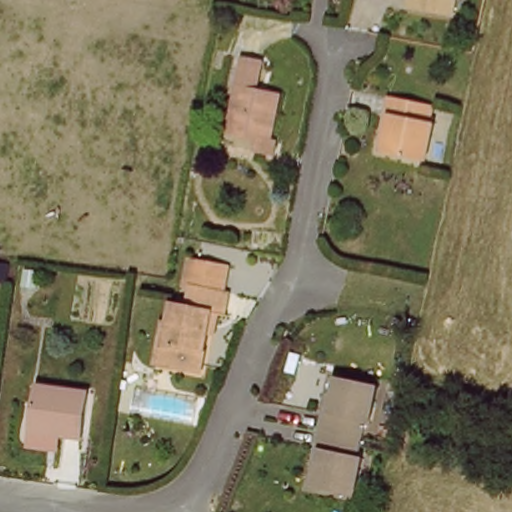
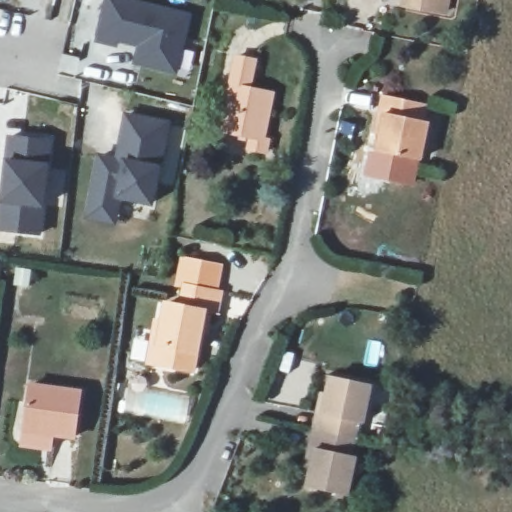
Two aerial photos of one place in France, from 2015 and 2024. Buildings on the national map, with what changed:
new [(191,14),(175,74),(132,65),(137,46),(119,43),(117,46),(94,42),(103,0),(131,0),(191,14)]
unchanged [(257,57),(252,86),(276,91),(269,133),(276,134),(272,150),(254,148),(256,131),(226,126),(238,52),(257,57)]
unchanged [(430,99),(427,114),(433,115),(424,155),(383,148),(386,127),(381,126),(389,92),(430,99)]
new [(100,157),(118,160),(127,116),(167,124),(152,204),(119,198),(117,209),(114,222),(88,217),(91,204),(100,157)]
new [(52,140),(46,163),(49,164),(44,209),(41,208),(42,235),(0,231),(0,188),(3,158),(7,135),(52,140)]
unchanged [(158,323),(165,324),(169,303),(181,304),(192,254),(219,257),(214,288),(236,291),(232,313),(221,311),(213,373),(167,367),(152,364),(158,323)]
unchanged [(370,379),(361,424),(354,421),(347,452),(355,453),(347,493),(307,484),(315,446),(305,442),(315,407),(322,409),(332,372),(370,379)]
unchanged [(84,389),(78,432),(27,426),(34,382),(84,389)]

